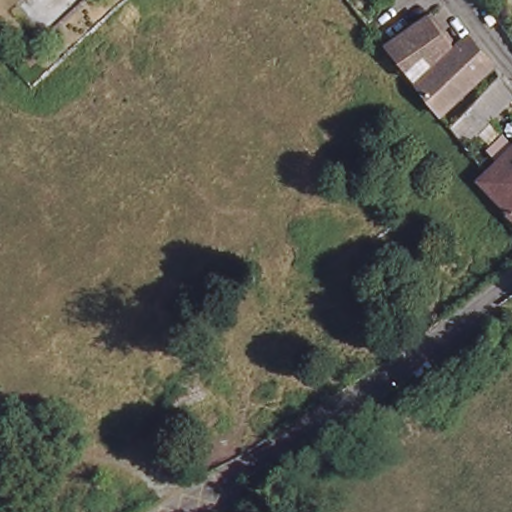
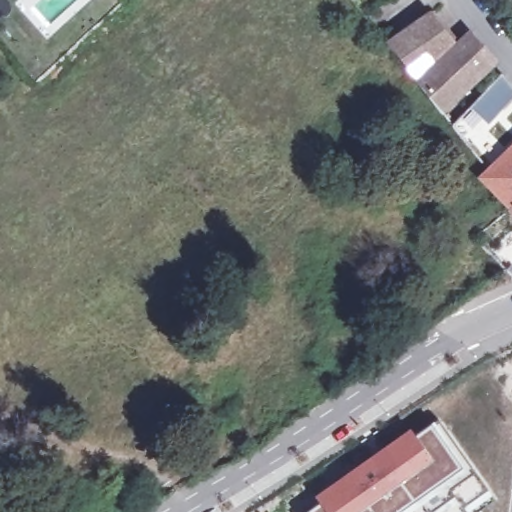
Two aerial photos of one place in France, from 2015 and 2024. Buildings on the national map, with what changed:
unchanged [(427,20),(454,50),(415,84),(385,48),(427,20)]
unchanged [(452,129),(451,128),(442,116),(422,92),(419,89),(457,54),(470,42),(492,68),(459,100),(469,112),(452,129)]
unchanged [(512,91),(512,102),(493,121),(476,105),(502,79),(512,91)]
unchanged [(512,143),(512,214),(476,177),(483,170),(512,143)]
new [(465,507),(468,512),(302,512),(437,415),(489,489),(465,507)]

